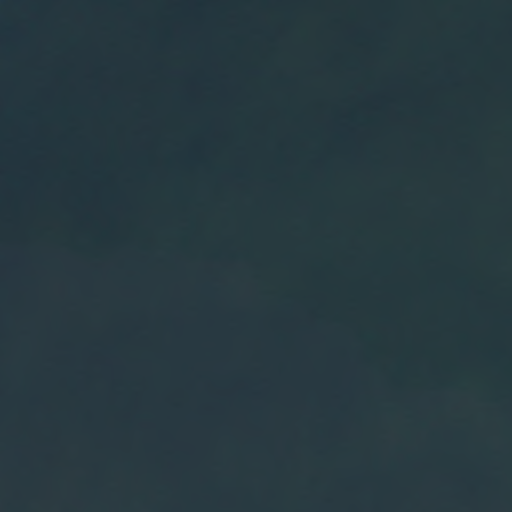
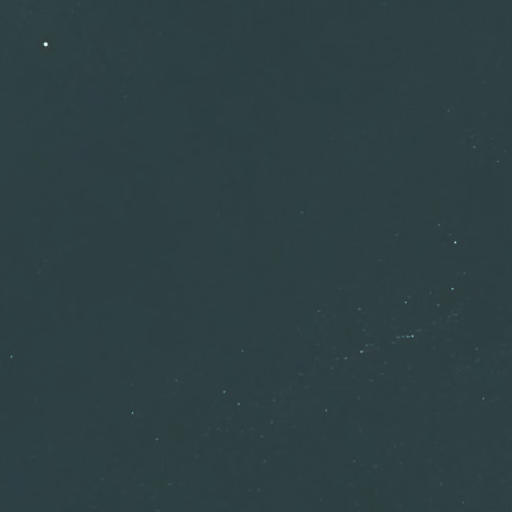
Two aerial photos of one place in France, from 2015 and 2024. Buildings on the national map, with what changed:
[]

